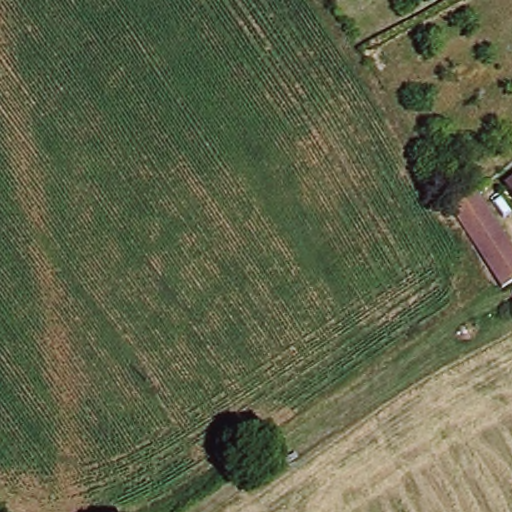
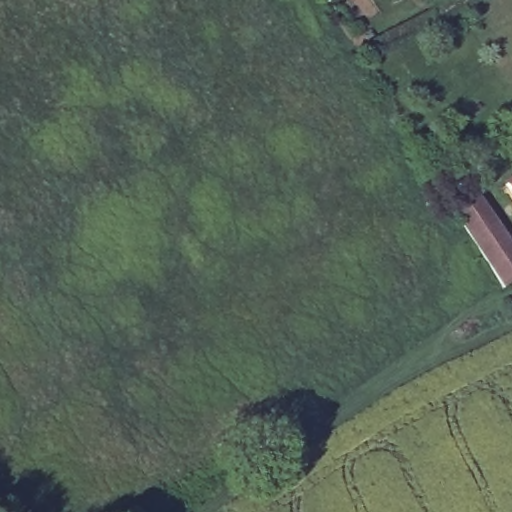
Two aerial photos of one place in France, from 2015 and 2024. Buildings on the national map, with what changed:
unchanged [(504,184),(512,179),(512,196),(504,184)]
unchanged [(512,255),(512,288),(506,292),(457,225),(449,211),(468,196),(512,255)]

